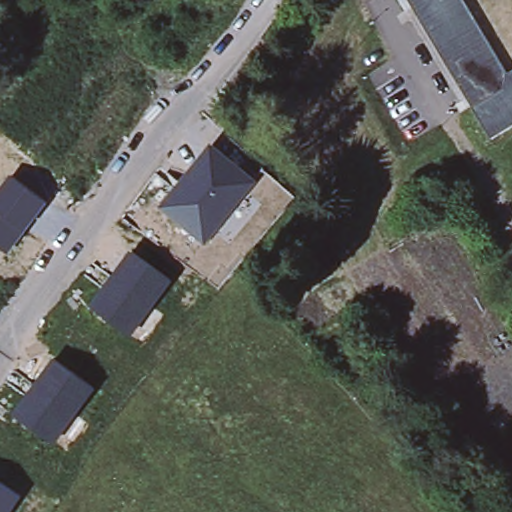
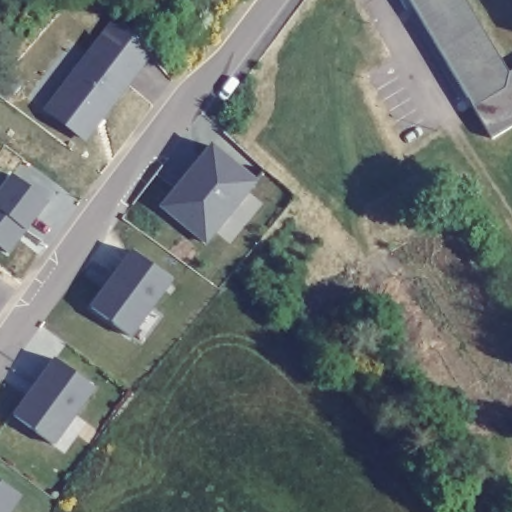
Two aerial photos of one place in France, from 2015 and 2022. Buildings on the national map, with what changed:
unchanged [(492,135),(410,0),(512,0),(512,123),(492,135)]
new [(43,109),(100,34),(116,14),(150,53),(141,66),(85,141),(43,109)]
unchanged [(158,207),(209,142),(256,179),(205,245),(158,207)]
unchanged [(0,187),(10,174),(47,201),(7,253),(0,248),(0,187)]
unchanged [(89,306),(130,250),(171,280),(130,336),(89,306)]
unchanged [(12,413),(53,358),(93,388),(53,445),(12,413)]
unchanged [(10,512),(0,512),(0,483),(20,496),(10,512)]

